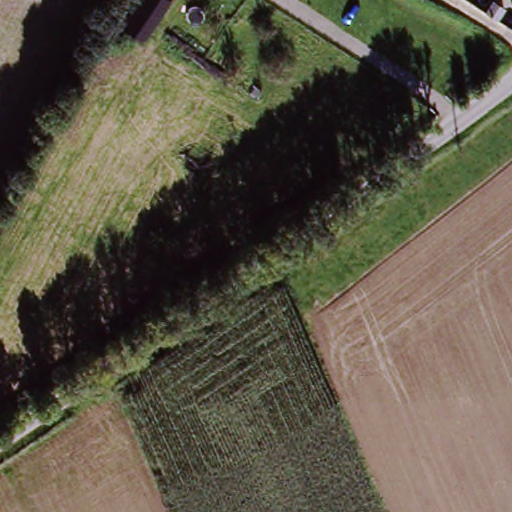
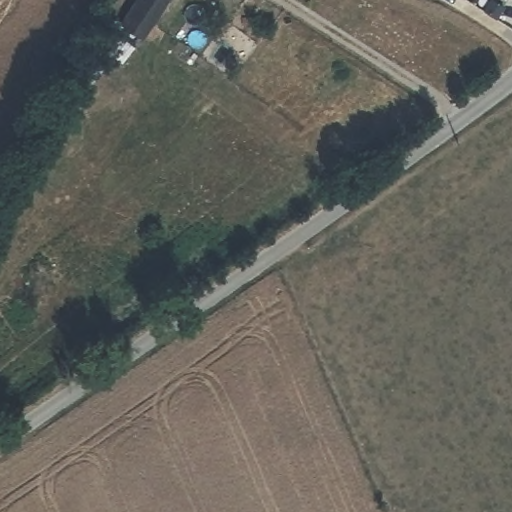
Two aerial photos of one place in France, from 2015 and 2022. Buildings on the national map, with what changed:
unchanged [(167,0),(143,43),(121,30),(136,0),(167,0)]

